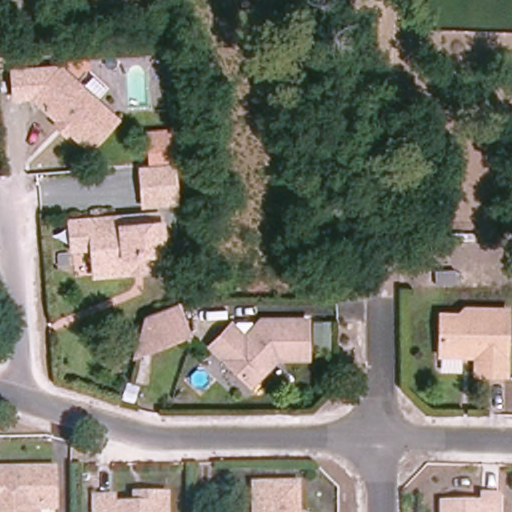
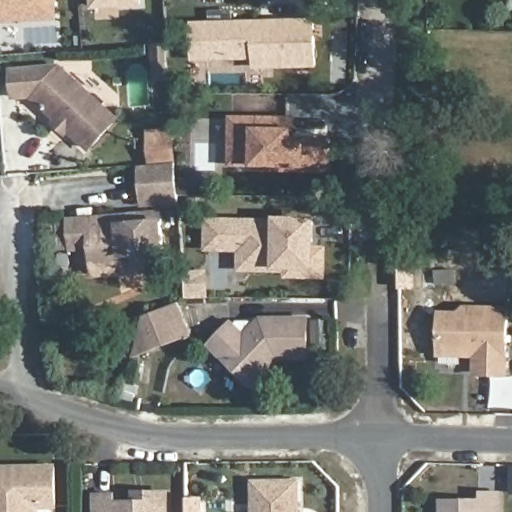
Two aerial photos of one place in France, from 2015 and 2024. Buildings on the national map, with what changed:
new [(0,21),(0,0),(54,0),(55,17),(0,21)]
new [(90,10),(89,0),(143,0),(144,7),(90,10)]
new [(191,22),(317,19),(318,66),(254,67),(254,62),(191,64),(191,22)]
unchanged [(58,67),(116,120),(89,149),(68,130),(67,126),(63,122),(59,122),(31,97),(58,67)]
new [(250,164),(234,163),(234,137),(234,117),(293,119),(293,139),(331,139),(331,169),(291,167),(269,167),(270,164),(250,164)]
new [(149,133),(174,132),(176,162),(179,202),(144,205),(141,166),(151,165),(149,133)]
unchanged [(168,265),(147,266),(147,278),(93,281),(91,253),(71,254),(68,222),(166,211),(168,265)]
new [(315,247),(327,247),(327,275),(290,274),(290,269),(243,268),(243,248),(210,247),(211,219),(230,219),(315,220),(315,247)]
unchanged [(437,271),(457,271),(457,285),(437,285),(437,271)]
unchanged [(502,375),(477,375),(477,356),(437,355),(437,314),(456,315),(462,309),(504,310),(502,375)]
unchanged [(174,313),(175,313),(184,336),(137,355),(145,325),(174,313)]
unchanged [(229,324),(241,337),(258,320),(304,319),(305,359),(274,360),(270,360),(266,363),(266,368),(248,387),(207,346),(229,324)]
unchanged [(55,506),(37,506),(38,512),(0,512),(0,467),(55,467),(55,506)]
unchanged [(255,483),(299,482),(299,512),(256,512),(255,483)]
unchanged [(443,502),(483,501),(483,494),(499,493),(499,512),(443,512),(443,502)]
unchanged [(111,501),(111,508),(132,508),(140,508),(140,498),(164,498),(164,512),(92,512),(92,501),(111,501)]

